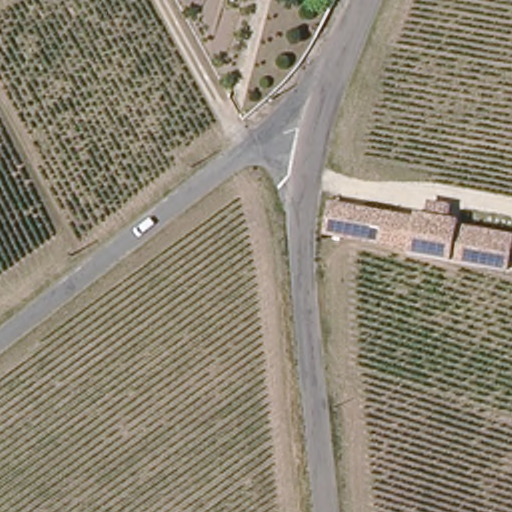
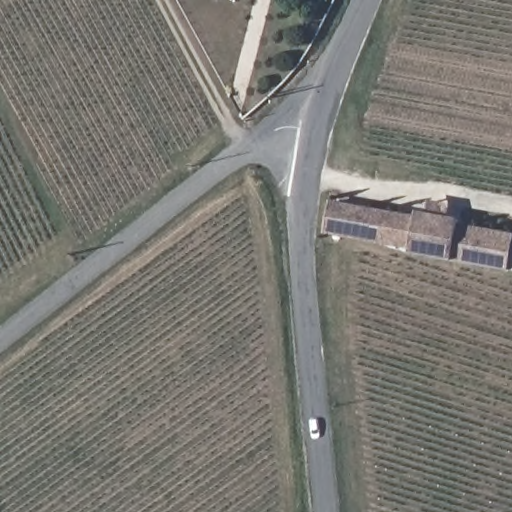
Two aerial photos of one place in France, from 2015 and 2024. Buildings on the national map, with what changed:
unchanged [(417,209),(427,211),(428,203),(448,205),(447,216),(457,218),(457,225),(512,234),(512,240),(507,271),(410,255),(411,249),(437,254),(442,218),(416,214),(417,209)]
unchanged [(437,254),(411,249),(332,235),(337,204),(416,214),(442,218),(437,254)]

